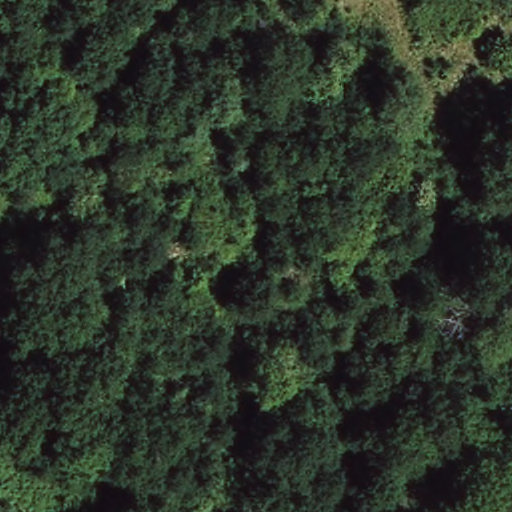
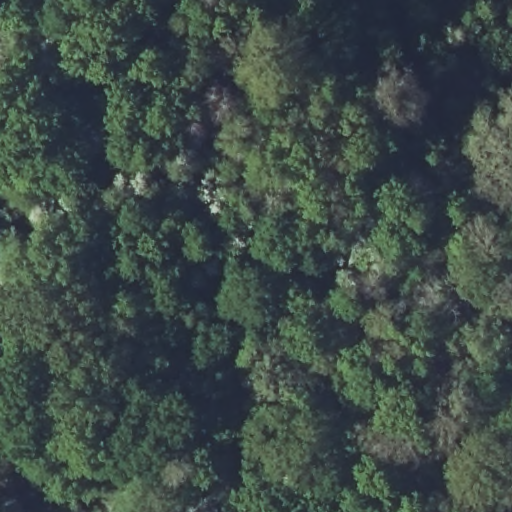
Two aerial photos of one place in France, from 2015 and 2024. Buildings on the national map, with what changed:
unchanged [(104,146),(54,136),(60,104),(110,114),(104,146)]

